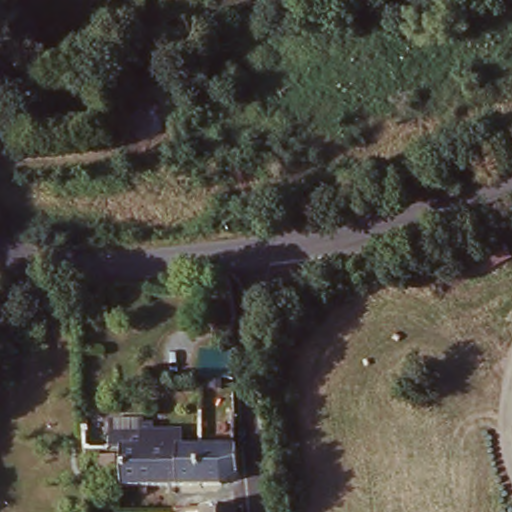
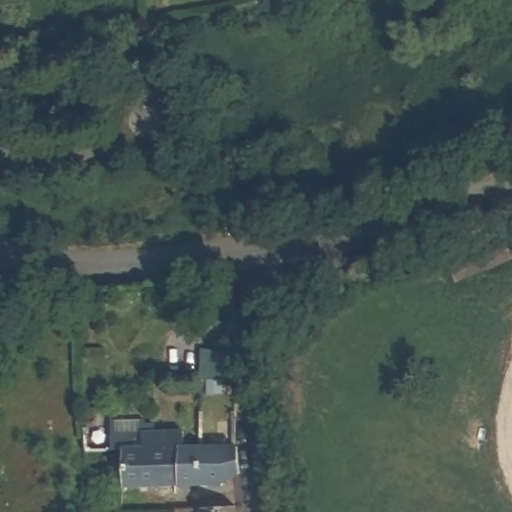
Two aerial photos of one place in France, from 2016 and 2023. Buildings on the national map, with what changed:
unchanged [(208,345),(240,344),(240,345),(241,376),(241,378),(208,379),(208,345)]
unchanged [(235,420),(235,409),(243,407),(244,419),(235,420)]
unchanged [(154,430),(137,430),(136,444),(120,444),(120,449),(110,445),(110,433),(116,432),(117,420),(145,417),(148,422),(157,422),(158,430),(154,430)]
unchanged [(234,477),(218,487),(119,491),(120,444),(136,444),(137,430),(183,430),(184,444),(233,444),(234,477)]
unchanged [(238,509),(239,512),(200,512),(200,511),(238,509)]

